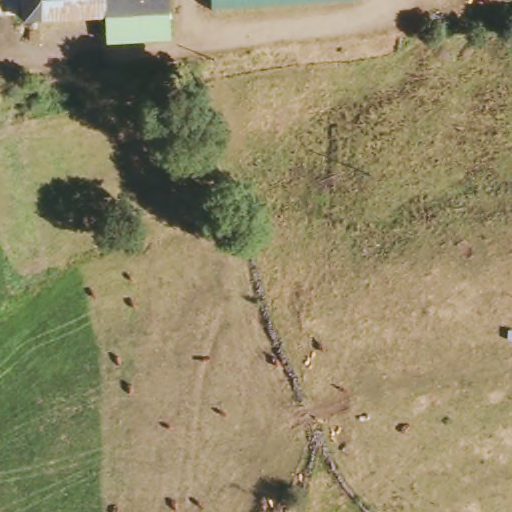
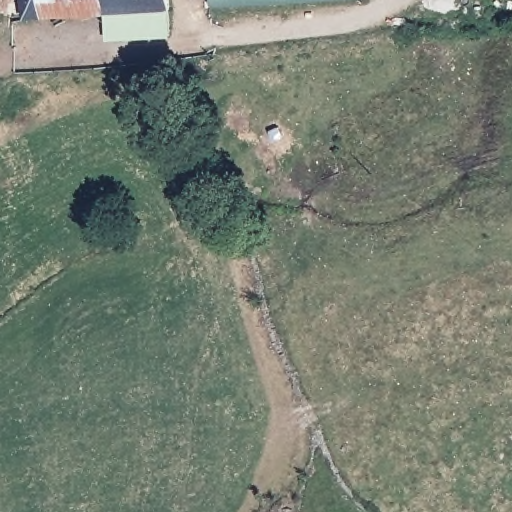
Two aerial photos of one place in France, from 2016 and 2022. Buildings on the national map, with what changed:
unchanged [(175,15),(31,19),(31,0),(175,0),(175,15)]
unchanged [(210,0),(275,0),(210,5),(210,0)]
unchanged [(176,36),(105,39),(105,17),(175,15),(176,36)]

